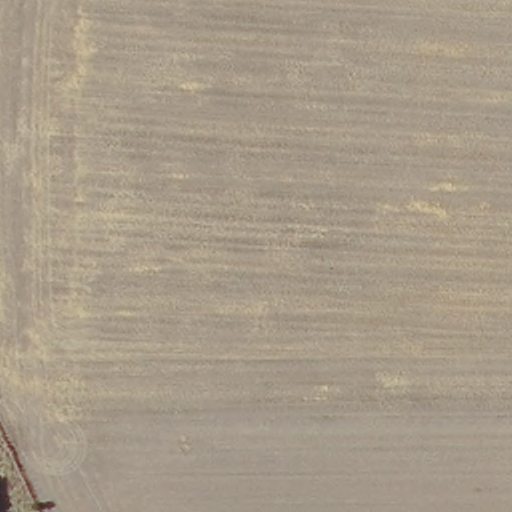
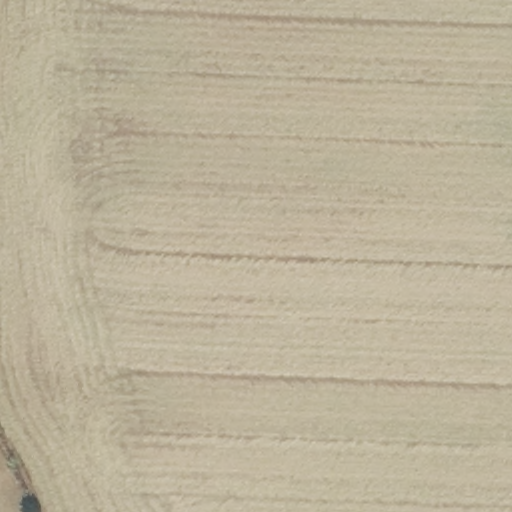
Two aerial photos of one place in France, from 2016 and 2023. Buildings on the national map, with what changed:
[]

